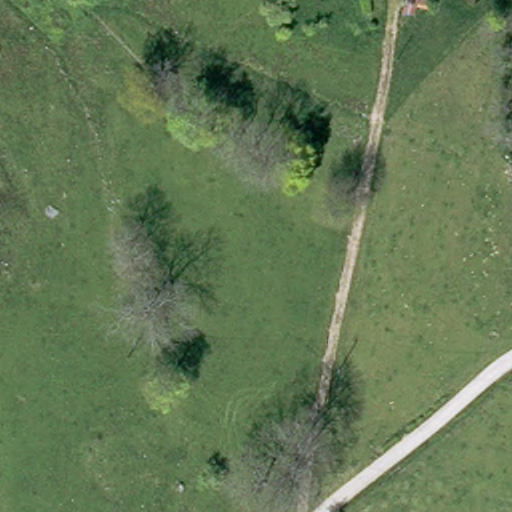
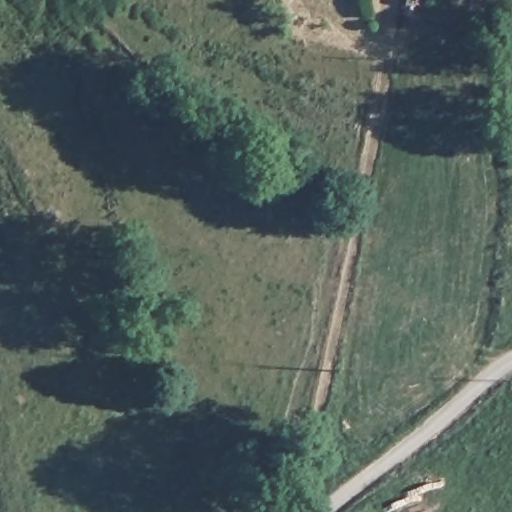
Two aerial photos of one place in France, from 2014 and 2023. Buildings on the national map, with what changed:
unchanged [(405,32),(390,29),(391,24),(395,16),(410,23),(405,32)]

